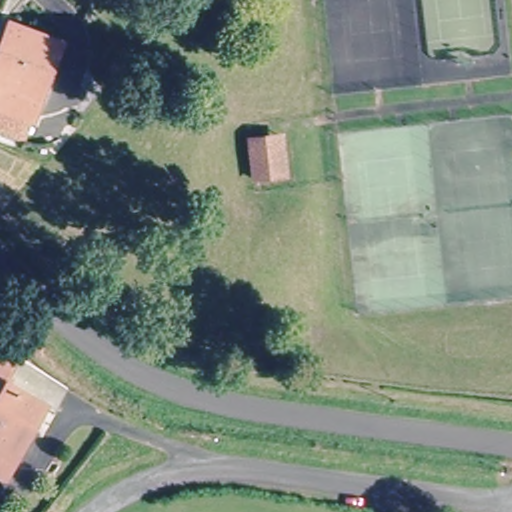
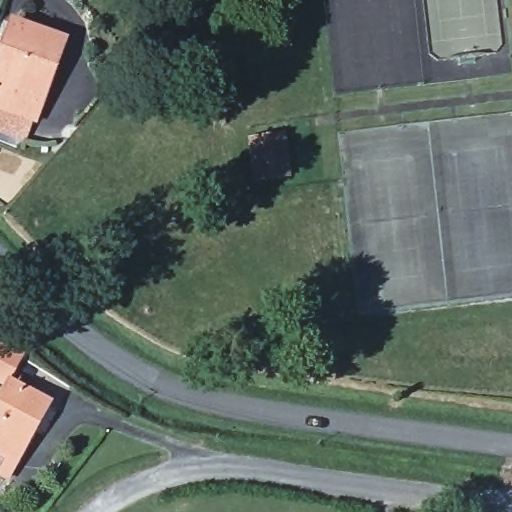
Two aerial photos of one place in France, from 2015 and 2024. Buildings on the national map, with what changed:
unchanged [(0,64),(15,30),(62,51),(29,124),(0,111),(0,64)]
unchanged [(244,142),(268,139),(279,137),(285,175),(275,177),(251,181),(244,142)]
unchanged [(0,384),(0,344),(0,343),(20,354),(3,385),(0,384)]
unchanged [(0,477),(0,400),(9,386),(48,409),(4,479),(0,477)]

